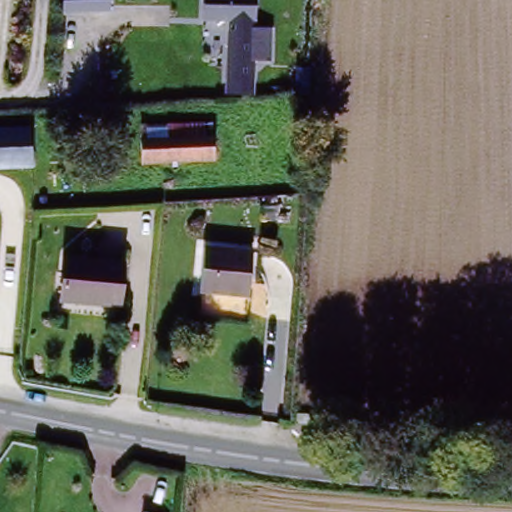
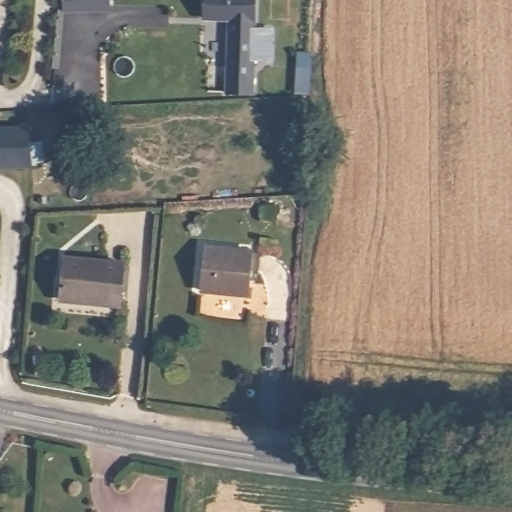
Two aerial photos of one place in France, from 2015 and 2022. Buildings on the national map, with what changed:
unchanged [(106,15),(61,15),(61,0),(106,0),(106,15)]
unchanged [(229,24),(203,22),(203,0),(252,0),(248,32),(268,34),(265,65),(250,64),(246,99),(225,98),(229,24)]
unchanged [(143,125),(168,125),(168,136),(215,136),(216,160),(144,161),(143,137),(143,125)]
unchanged [(31,166),(0,167),(0,127),(31,126),(31,166)]
unchanged [(204,250),(249,254),(246,298),(201,294),(204,250)]
unchanged [(120,302),(63,301),(65,257),(121,258),(120,302)]

